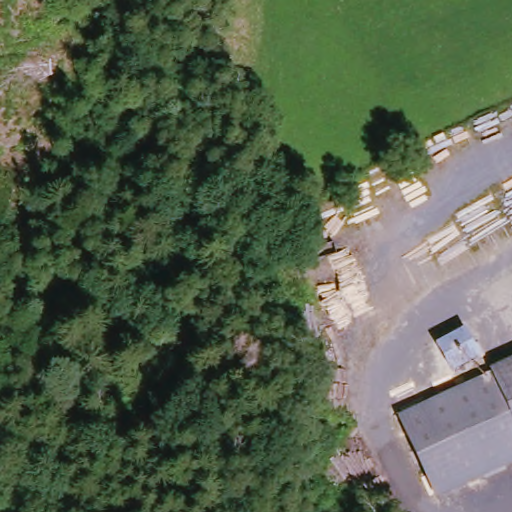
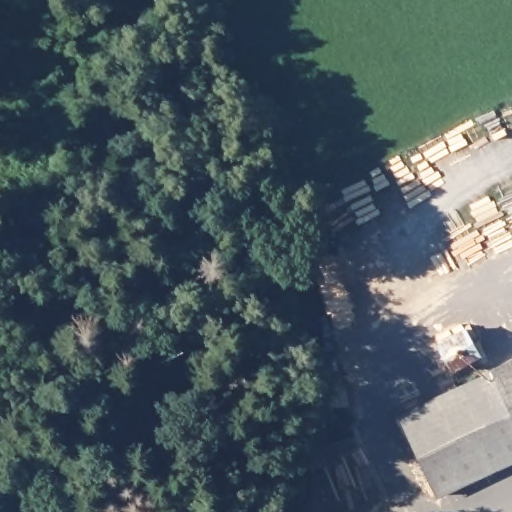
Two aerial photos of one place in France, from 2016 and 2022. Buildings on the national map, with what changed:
unchanged [(472,354),(444,367),(431,340),(459,327),(472,354)]
unchanged [(485,370),(512,357),(512,426),(488,377),(485,370)]
unchanged [(488,377),(512,426),(512,462),(433,498),(397,418),(488,377)]

